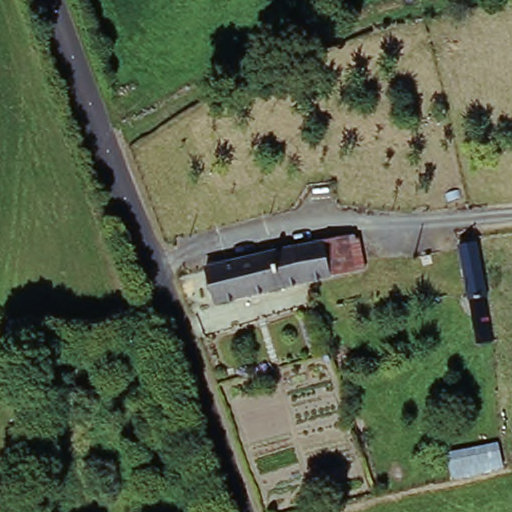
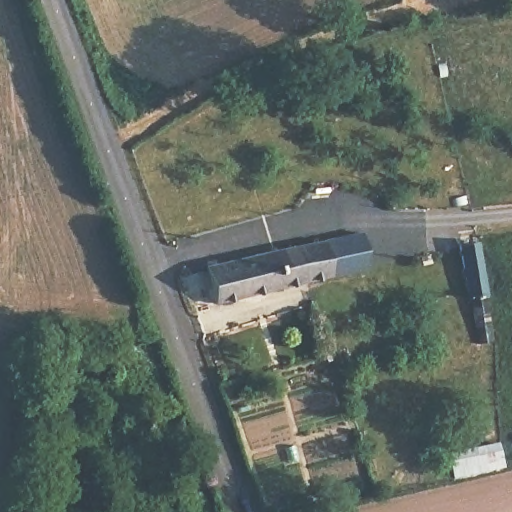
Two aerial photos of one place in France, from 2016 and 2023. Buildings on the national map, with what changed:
unchanged [(360,235),(369,274),(340,280),(329,244),(360,235)]
unchanged [(218,273),(329,244),(340,280),(309,290),(226,311),(218,273)]
unchanged [(484,255),(498,345),(479,352),(460,260),(484,255)]
unchanged [(452,460),(500,450),(506,475),(456,486),(452,460)]

